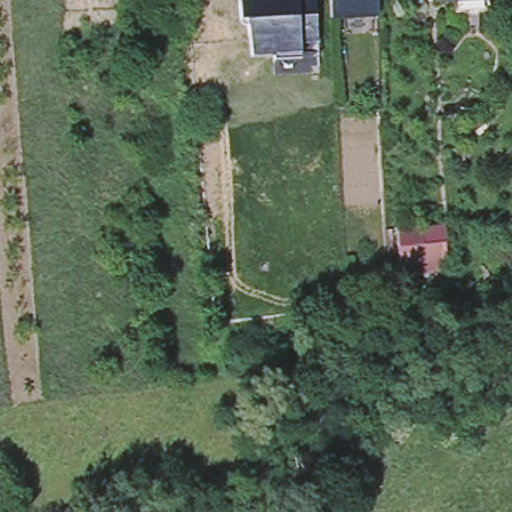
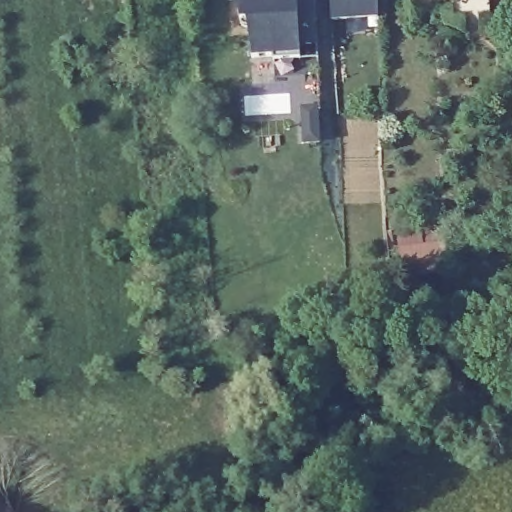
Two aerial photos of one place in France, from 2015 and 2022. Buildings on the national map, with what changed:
unchanged [(319,42),(301,43),(301,53),(274,55),(253,56),(253,51),(253,49),(253,47),(252,45),(252,41),(251,37),(251,34),(251,32),(250,29),(249,26),(249,24),(248,21),(248,19),(243,19),(242,0),(317,0),(319,42)]
unchanged [(374,13),(328,11),(327,0),(373,0),(374,13)]
unchanged [(495,8),(469,9),(460,10),(459,0),(495,0),(495,8)]
unchanged [(321,78),(314,78),(313,73),(276,75),(274,55),(301,53),(301,43),(319,42),(321,78)]
unchanged [(438,224),(441,271),(408,273),(405,258),(384,261),(383,227),(438,224)]

